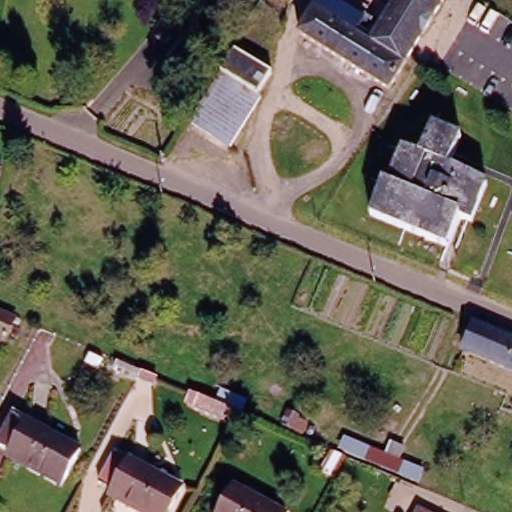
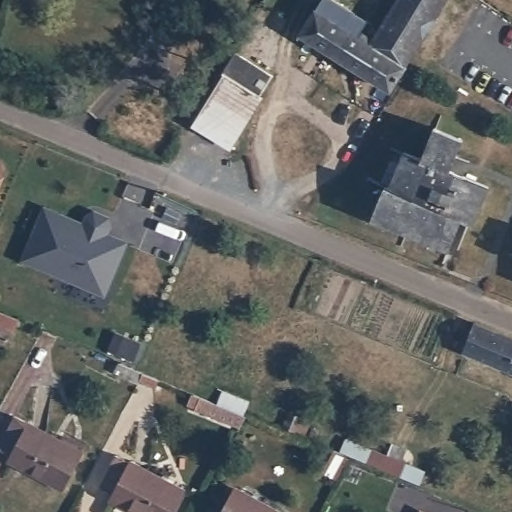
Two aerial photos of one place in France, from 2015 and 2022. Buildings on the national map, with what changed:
unchanged [(378,32),(398,0),(445,0),(390,91),(300,35),(321,0),(332,0),(372,26),(371,27),(378,32)]
unchanged [(237,54),(262,69),(272,75),(258,99),(260,101),(230,149),(192,125),(237,54)]
unchanged [(445,166),(483,181),(469,217),(457,213),(443,245),(366,214),(380,182),(385,184),(400,147),(416,154),(428,124),(457,135),(445,166)]
new [(43,206),(77,219),(75,224),(80,227),(86,214),(92,209),(106,215),(107,222),(105,231),(124,239),(103,290),(22,257),(43,206)]
unchanged [(13,321),(2,343),(0,342),(0,315),(13,321)]
unchanged [(475,328),(512,343),(512,377),(465,357),(475,328)]
unchanged [(155,387),(140,381),(139,383),(115,372),(119,362),(145,373),(158,379),(155,387)]
unchanged [(201,397),(243,415),(245,415),(238,427),(196,408),(201,397)]
unchanged [(302,418),(296,432),(282,426),(288,412),(302,418)]
unchanged [(62,486),(10,457),(12,453),(0,446),(0,445),(16,415),(81,452),(62,486)]
unchanged [(385,457),(391,444),(405,450),(400,462),(423,472),(418,484),(340,451),(344,438),(385,457)]
unchanged [(332,452),(347,457),(336,478),(322,471),(332,452)]
unchanged [(111,498),(113,492),(100,485),(117,454),(163,479),(165,474),(175,480),(173,484),(184,491),(172,512),(137,512),(111,498)]
unchanged [(236,489),(246,495),(249,490),(260,496),(257,501),(279,512),(224,512),(236,489)]
unchanged [(420,510),(425,512),(419,512),(420,510)]

